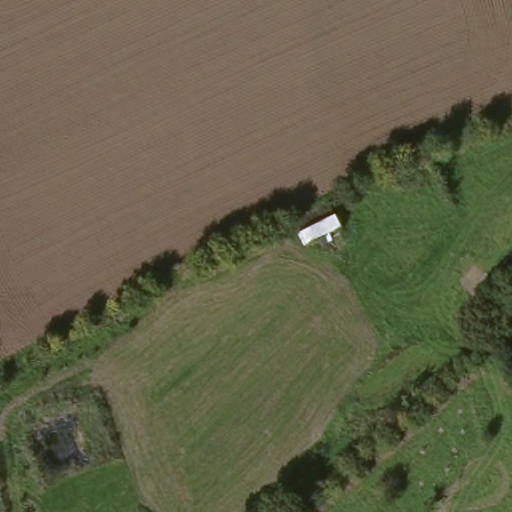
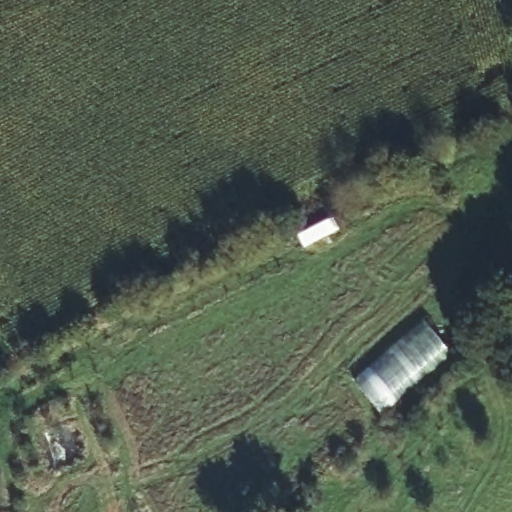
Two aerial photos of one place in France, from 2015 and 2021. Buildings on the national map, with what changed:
new [(450,352),(380,414),(352,378),(421,318),(450,352)]

